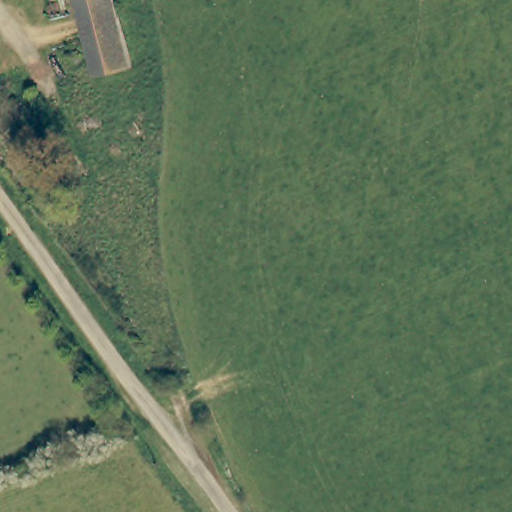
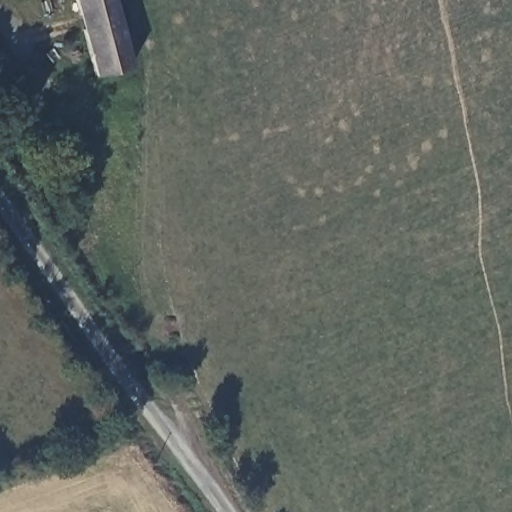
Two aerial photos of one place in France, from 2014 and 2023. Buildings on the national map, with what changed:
unchanged [(95,76),(76,0),(114,0),(131,67),(95,76)]

